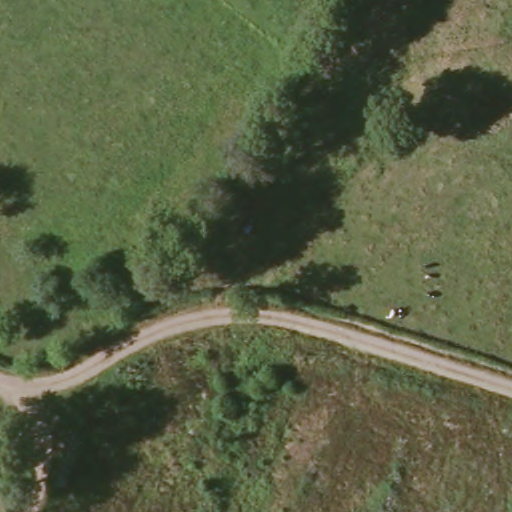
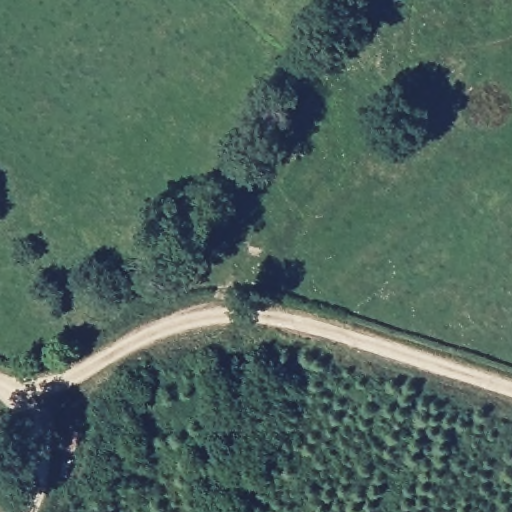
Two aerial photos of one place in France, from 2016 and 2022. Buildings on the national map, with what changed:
[]

